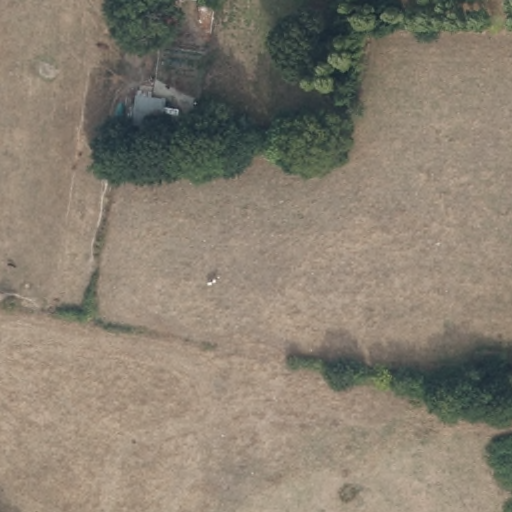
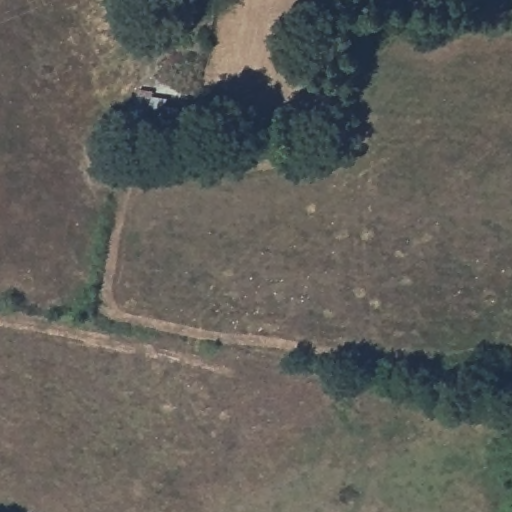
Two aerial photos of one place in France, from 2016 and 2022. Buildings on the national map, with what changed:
unchanged [(133,90),(154,94),(153,100),(165,103),(161,133),(147,131),(128,127),(133,90)]

